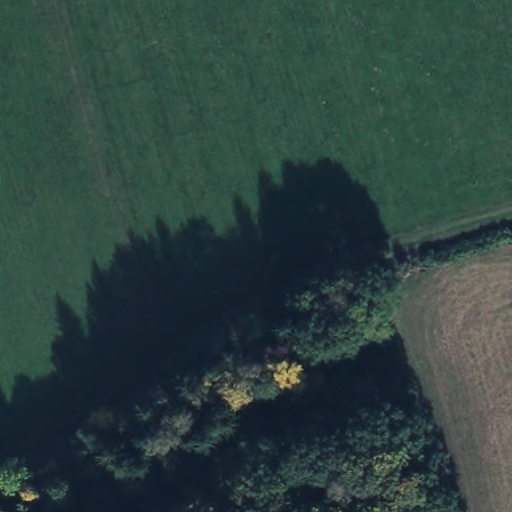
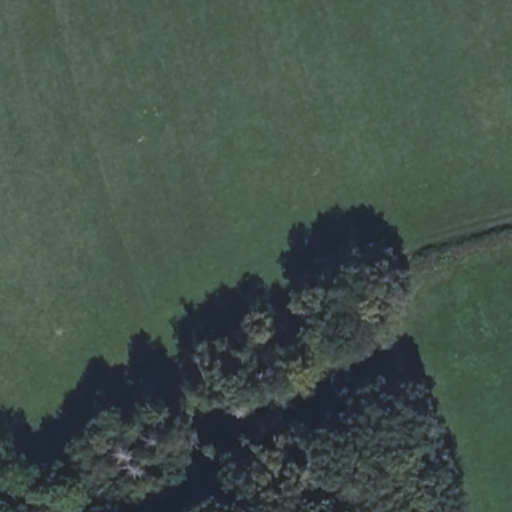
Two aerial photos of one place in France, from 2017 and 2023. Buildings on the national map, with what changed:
[]

